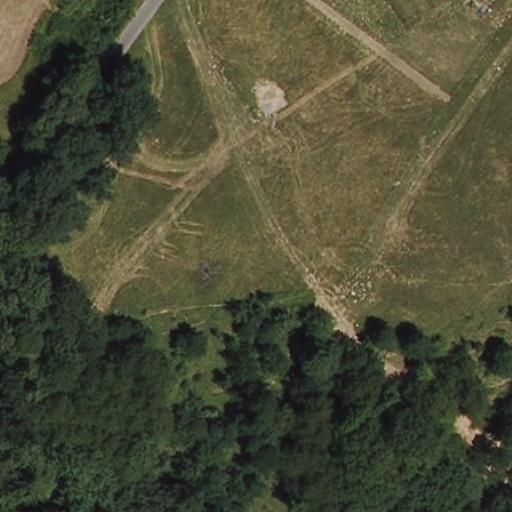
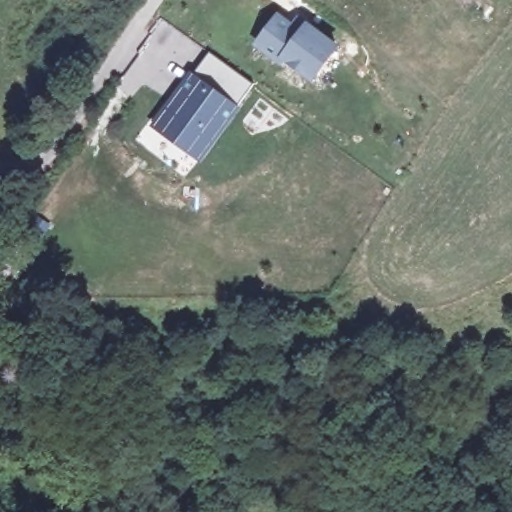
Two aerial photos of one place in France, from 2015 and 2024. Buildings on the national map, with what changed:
new [(303,25),(306,22),(340,46),(313,85),(284,62),(281,67),(252,46),(276,12),(303,25)]
new [(251,85),(236,105),(240,107),(201,163),(150,127),(195,70),(208,52),(251,85)]

